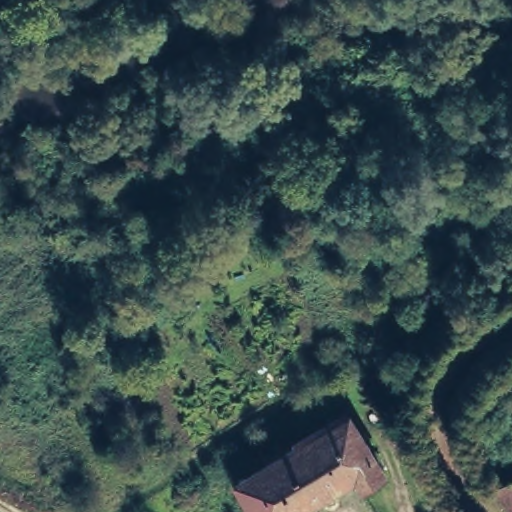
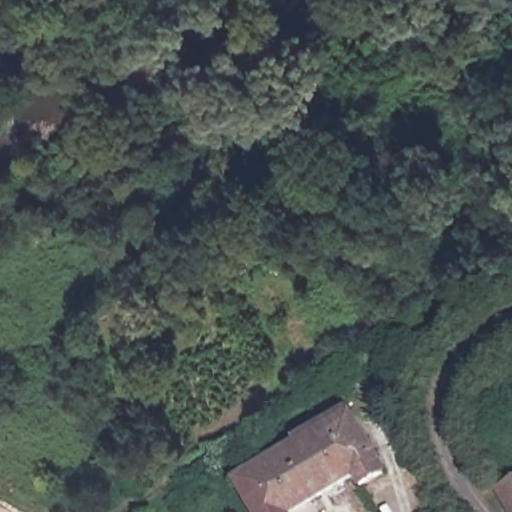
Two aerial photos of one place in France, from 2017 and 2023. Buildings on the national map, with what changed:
unchanged [(275,461),(268,449),(297,432),(301,439),(352,408),(391,473),(367,488),(360,477),(302,512),(259,512),(241,481),(275,461)]
unchanged [(501,491),(509,486),(511,491),(512,490),(512,512),(510,512),(508,508),(501,491)]

